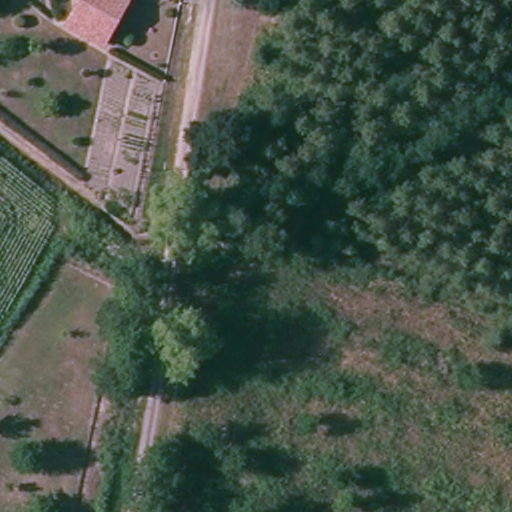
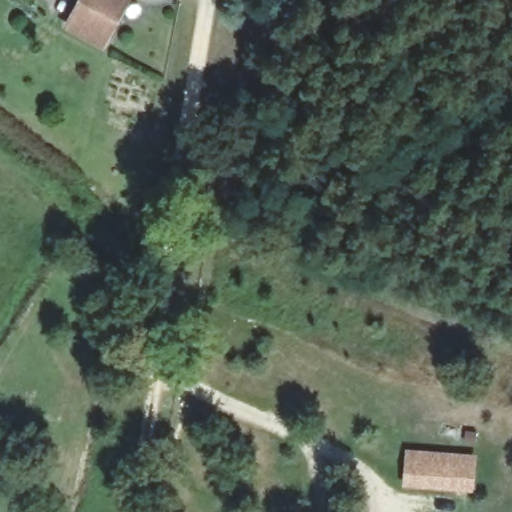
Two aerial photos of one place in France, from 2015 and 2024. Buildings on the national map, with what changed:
unchanged [(61,20),(71,0),(122,0),(100,41),(61,20)]
new [(476,455),(475,492),(402,486),(405,449),(476,455)]

